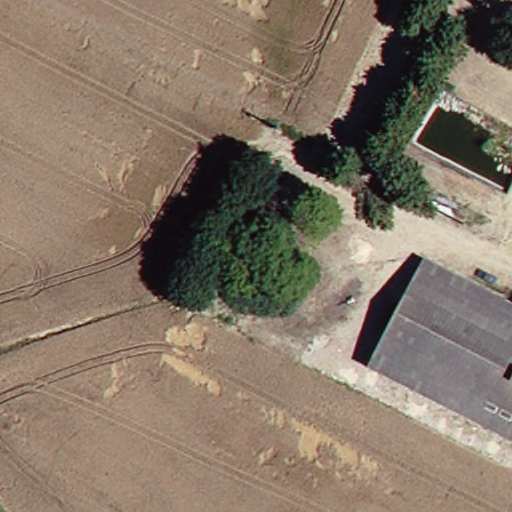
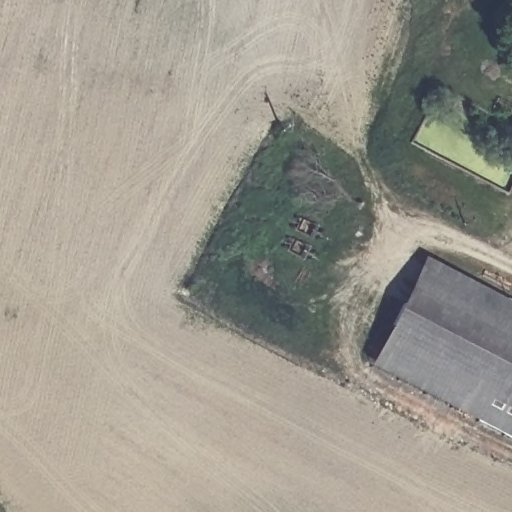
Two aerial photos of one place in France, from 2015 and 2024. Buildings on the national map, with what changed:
unchanged [(512,445),(361,367),(416,261),(512,310),(512,445)]

